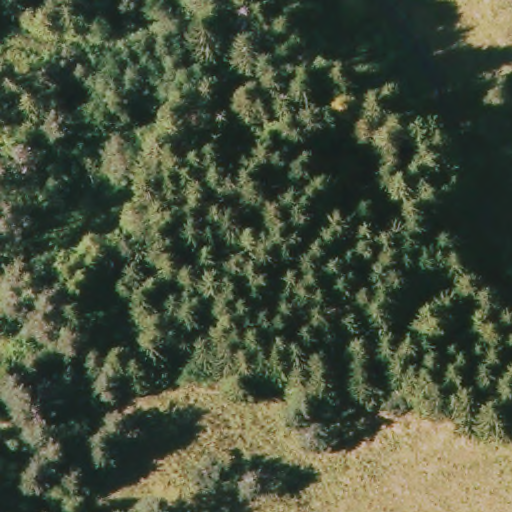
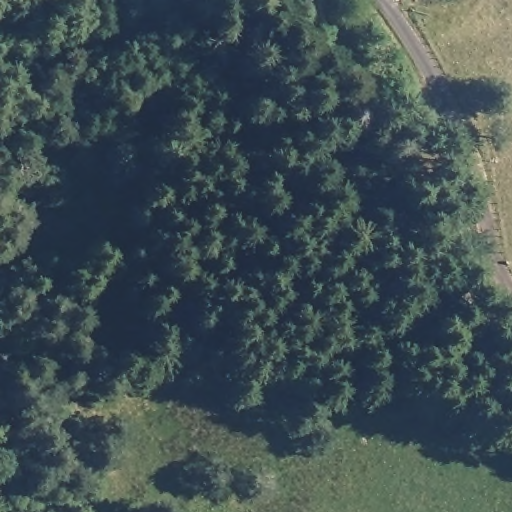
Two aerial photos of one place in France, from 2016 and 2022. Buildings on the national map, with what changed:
unchanged [(438,230),(455,220),(472,254),(457,262),(438,230)]

